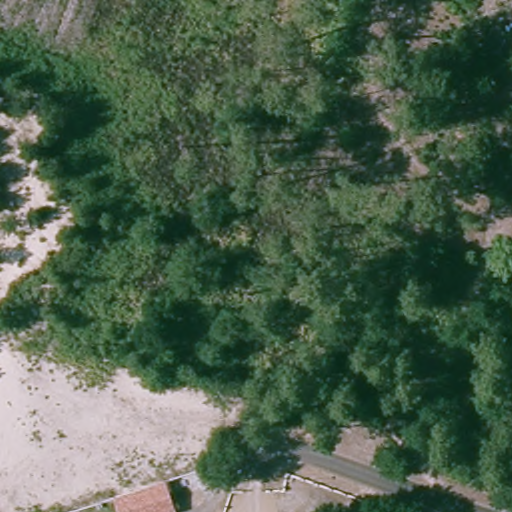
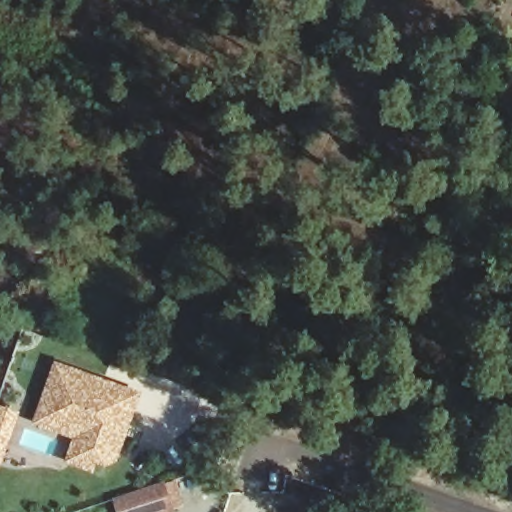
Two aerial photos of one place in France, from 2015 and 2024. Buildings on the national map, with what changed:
new [(141,394),(123,437),(115,458),(106,462),(95,458),(91,468),(68,459),(77,435),(37,419),(45,396),(52,380),(59,362),(73,367),(106,380),(141,394)]
new [(1,470),(0,470),(0,404),(21,413),(1,470)]
unchanged [(115,502),(164,486),(172,512),(118,512),(115,502)]

